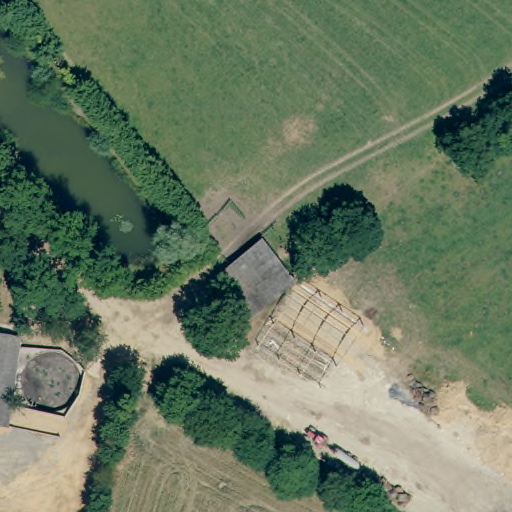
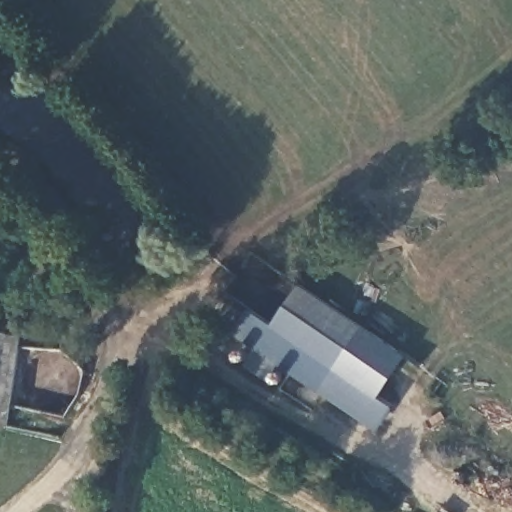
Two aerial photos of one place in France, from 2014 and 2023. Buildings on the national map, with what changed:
demolished [(274,301),(259,273),(247,280),(233,263),(261,237),(298,282),(274,301)]
new [(321,391),(280,364),(268,379),(246,363),(301,283),(365,327),(321,391)]
new [(256,350),(231,332),(250,306),(274,323),(256,350)]
new [(365,327),(410,355),(381,397),(396,406),(379,430),(321,391),(365,327)]
new [(24,338),(10,429),(0,426),(0,334),(24,338)]

